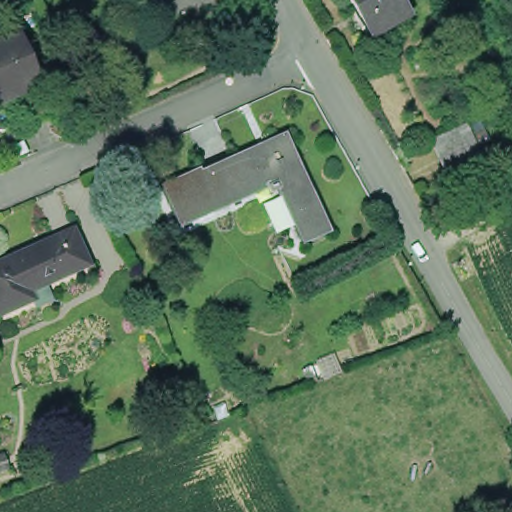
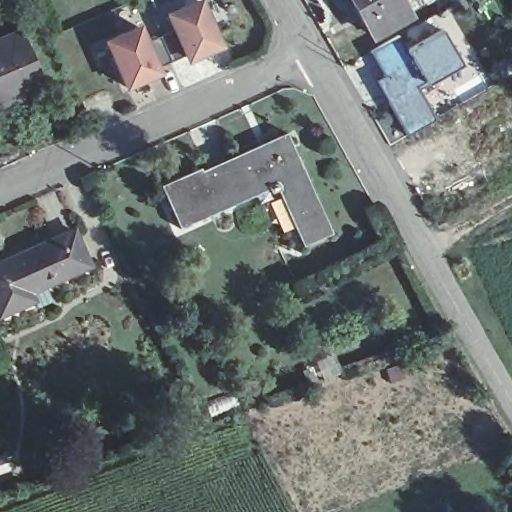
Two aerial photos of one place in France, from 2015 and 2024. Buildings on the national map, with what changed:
new [(223,48),(186,64),(163,12),(193,0),(202,0),(223,48)]
unchanged [(378,38),(353,0),(401,0),(412,17),(378,38)]
new [(464,63),(421,87),(441,121),(408,137),(376,82),(384,77),(371,54),(398,36),(404,46),(442,24),(464,63)]
new [(144,73),(146,77),(123,87),(105,44),(120,38),(119,34),(138,26),(145,42),(158,37),(169,62),(144,73)]
unchanged [(0,113),(0,49),(24,38),(44,84),(46,90),(19,103),(0,113)]
unchanged [(467,187),(447,142),(478,128),(498,172),(467,187)]
unchanged [(239,164),(268,151),(269,146),(289,136),(334,236),(307,246),(278,187),(254,196),(239,164)]
unchanged [(184,226),(166,188),(203,172),(206,178),(239,164),(254,196),(184,226)]
unchanged [(33,304),(8,314),(0,318),(0,317),(0,264),(73,234),(89,270),(46,289),(52,302),(36,309),(33,304)]

